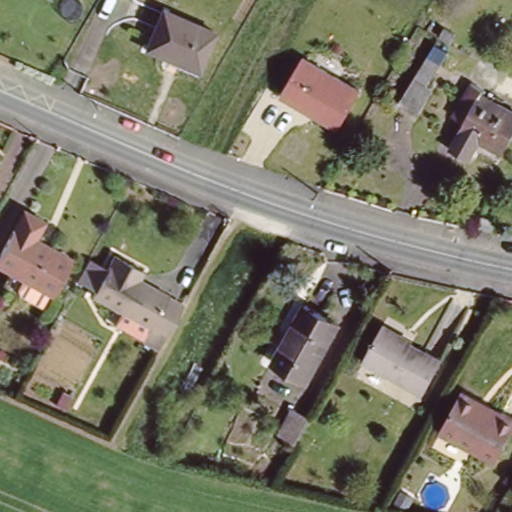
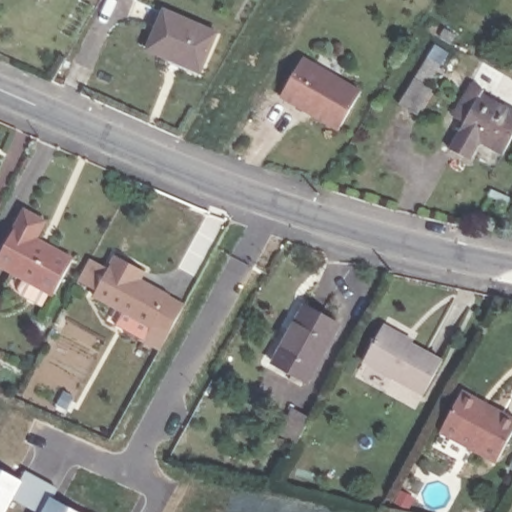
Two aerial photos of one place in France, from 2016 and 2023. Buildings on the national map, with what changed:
unchanged [(156,11),(212,31),(197,72),(142,53),(156,11)]
unchanged [(427,57),(439,64),(427,86),(431,89),(416,117),(399,108),(427,57)]
unchanged [(303,59),(359,90),(336,132),(280,99),(303,59)]
unchanged [(458,117),(477,84),(490,90),(486,96),(512,112),(512,147),(507,155),(467,131),(471,124),(458,117)]
unchanged [(17,290),(23,280),(0,268),(0,246),(20,210),(40,222),(30,239),(68,260),(41,309),(19,296),(17,290)]
unchanged [(484,210),(500,215),(493,229),(479,224),(484,210)]
unchanged [(93,291),(116,251),(137,262),(147,269),(143,277),(169,292),(168,294),(184,303),(160,347),(143,337),(150,325),(93,291)]
unchanged [(299,306),(334,325),(304,380),(269,361),(299,306)]
unchanged [(382,325),(409,341),(440,360),(422,394),(390,376),(362,360),(382,325)]
unchanged [(489,415),(490,412),(512,424),(512,432),(494,466),(440,436),(459,399),(489,415)]
new [(20,480),(25,471),(41,481),(27,507),(12,499),(5,512),(0,512),(0,469),(20,480)]
new [(58,490),(53,498),(77,512),(36,512),(27,507),(41,481),(58,490)]

